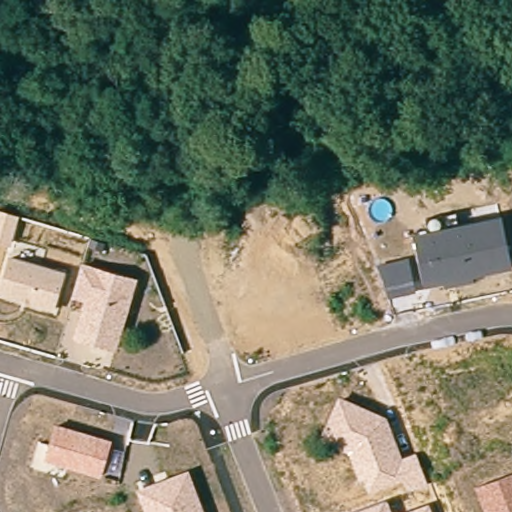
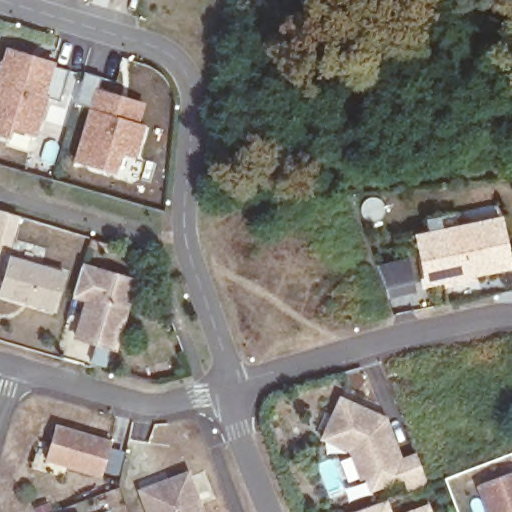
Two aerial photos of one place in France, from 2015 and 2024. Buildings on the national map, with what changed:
new [(1,70),(3,70),(7,56),(29,63),(53,70),(52,72),(69,77),(59,109),(47,105),(36,142),(11,135),(8,145),(0,142),(0,72),(1,70)]
new [(90,115),(75,110),(84,79),(101,84),(97,97),(121,104),(119,110),(141,116),(136,131),(144,134),(135,164),(127,190),(73,174),(75,167),(90,115)]
unchanged [(0,243),(0,209),(20,215),(11,246),(0,243)]
unchanged [(412,233),(502,215),(512,262),(512,267),(424,286),(412,233)]
unchanged [(0,295),(0,282),(8,255),(66,271),(55,311),(0,295)]
unchanged [(376,265),(410,256),(417,291),(387,297),(376,265)]
unchanged [(72,339),(83,300),(72,297),(82,262),(137,278),(116,351),(72,339)]
unchanged [(348,452),(320,440),(337,395),(387,417),(402,455),(416,450),(428,486),(407,493),(402,482),(367,492),(362,480),(358,481),(348,452)]
unchanged [(44,460),(55,423),(112,440),(102,477),(44,460)]
unchanged [(135,489),(189,469),(205,512),(144,512),(135,489)]
unchanged [(512,472),(512,512),(486,512),(476,485),(512,472)]
unchanged [(388,500),(393,512),(353,512),(388,500)]
unchanged [(433,512),(404,512),(429,502),(433,512)]

